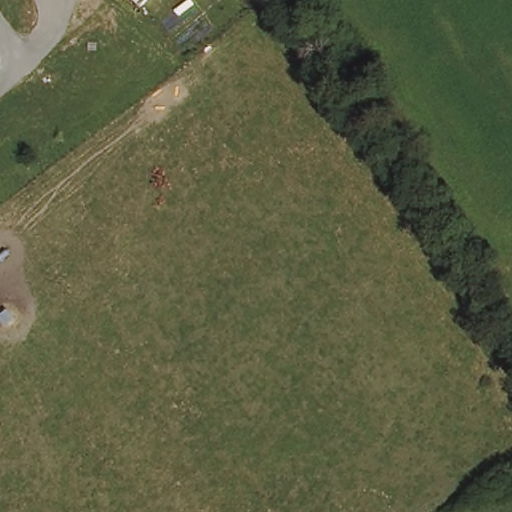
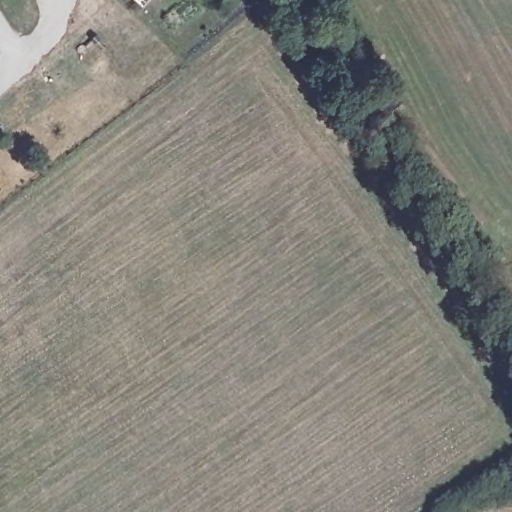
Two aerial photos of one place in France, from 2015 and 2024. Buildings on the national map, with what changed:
unchanged [(140,0),(149,0),(145,4),(140,0)]

